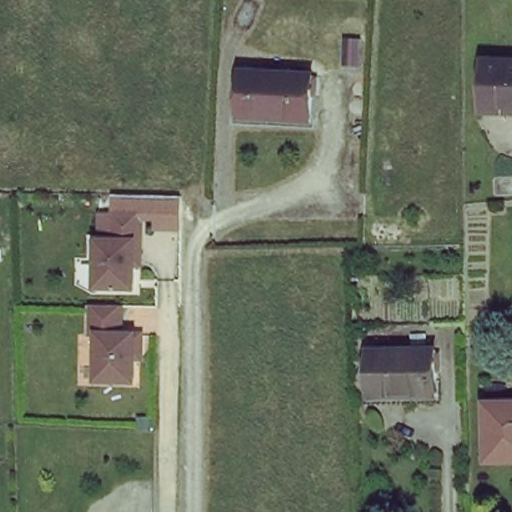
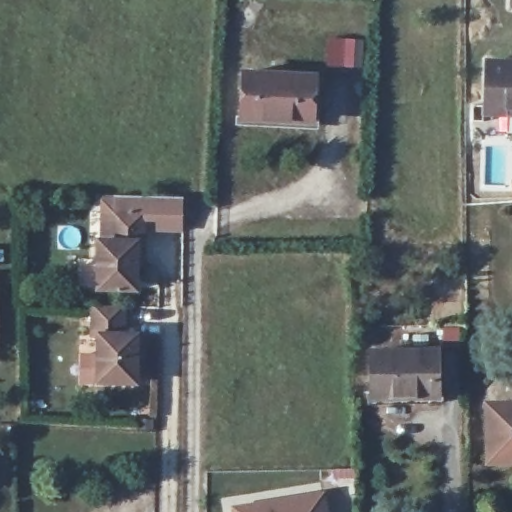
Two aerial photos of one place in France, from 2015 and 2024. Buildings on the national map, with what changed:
unchanged [(488,116),(491,64),(512,65),(512,116),(488,116)]
unchanged [(243,116),(246,69),(318,73),(315,119),(243,116)]
unchanged [(143,292),(95,288),(94,269),(87,267),(89,234),(110,236),(111,210),(145,212),(143,292)]
unchanged [(126,332),(145,332),(145,383),(97,383),(98,337),(91,336),(91,303),(125,307),(126,332)]
unchanged [(411,347),(411,337),(426,337),(426,347),(411,347)]
unchanged [(438,398),(371,400),(371,352),(437,352),(438,398)]
unchanged [(489,460),(488,402),(512,402),(512,460),(489,460)]
new [(329,512),(232,512),(231,505),(326,489),(329,512)]

